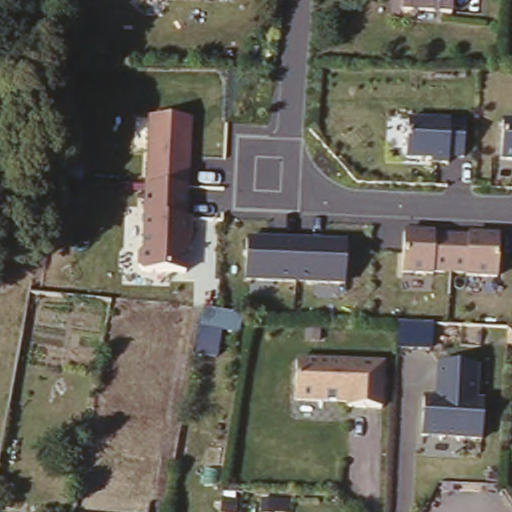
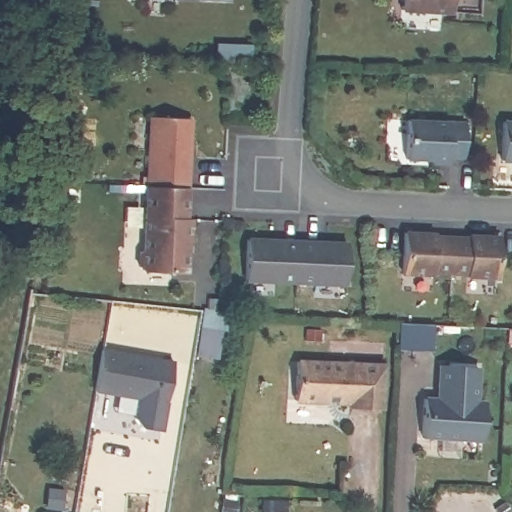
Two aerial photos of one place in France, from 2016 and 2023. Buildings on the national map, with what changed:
unchanged [(452,8),(402,5),(402,0),(453,0),(452,8)]
unchanged [(150,117),(191,119),(185,271),(141,270),(150,117)]
unchanged [(407,119),(463,121),(465,159),(450,159),(448,166),(432,165),(432,160),(407,159),(407,119)]
unchanged [(503,121),(512,121),(512,161),(502,161),(503,121)]
unchanged [(408,231),(501,236),(499,277),(406,274),(408,231)]
unchanged [(248,240),(347,242),(347,284),(246,282),(248,240)]
unchanged [(242,311),(240,324),(222,322),(217,352),(199,348),(206,304),(242,311)]
new [(396,344),(396,318),(436,319),(434,347),(396,344)]
new [(172,356),(162,431),(141,428),(134,417),(136,396),(97,391),(103,348),(172,356)]
unchanged [(297,359),(382,367),(381,415),(347,415),(346,406),(293,404),(297,359)]
unchanged [(433,398),(436,362),(474,364),(474,399),(483,400),(482,440),(419,436),(423,398),(433,398)]

